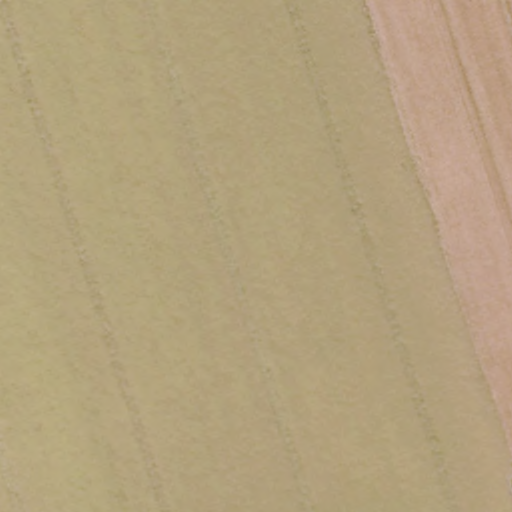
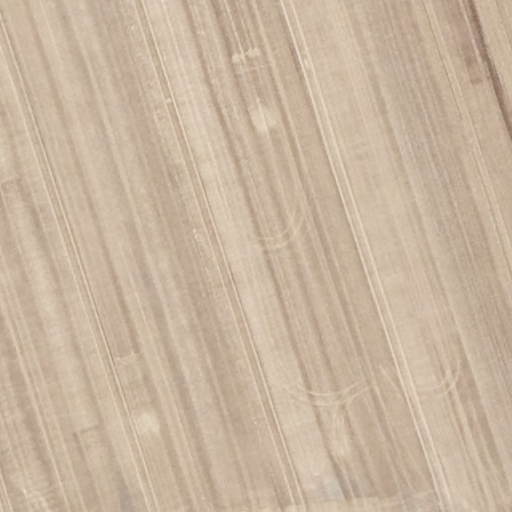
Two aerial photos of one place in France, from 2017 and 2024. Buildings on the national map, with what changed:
[]

